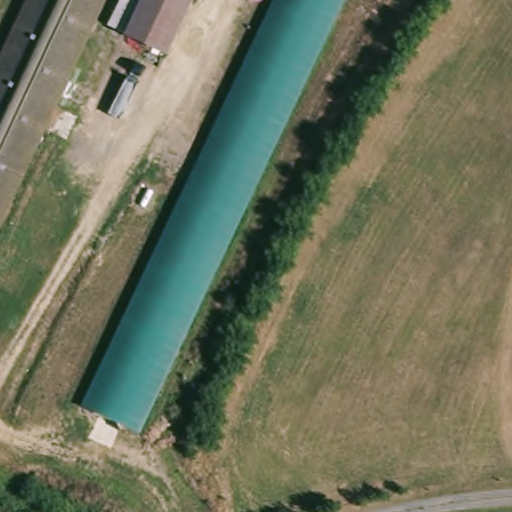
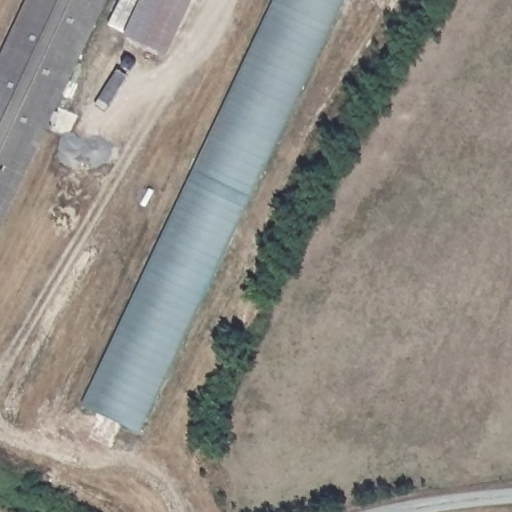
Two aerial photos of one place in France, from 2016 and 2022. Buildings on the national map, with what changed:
unchanged [(0,71),(34,0),(110,0),(0,230),(0,71)]
unchanged [(260,0),(342,0),(138,428),(75,397),(260,0)]
unchanged [(126,45),(144,0),(201,0),(169,66),(126,45)]

